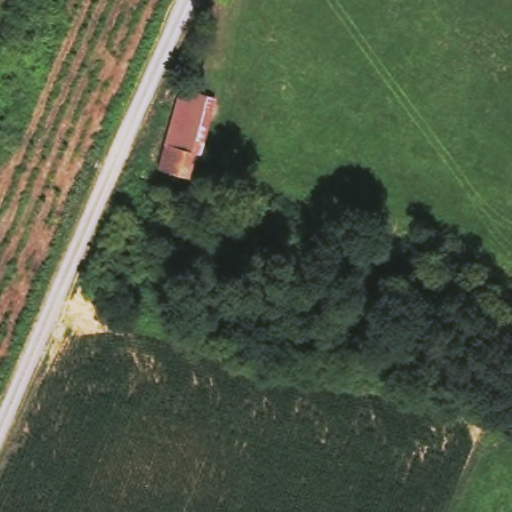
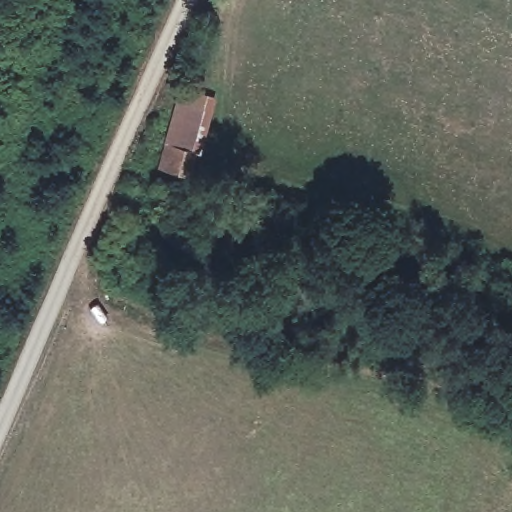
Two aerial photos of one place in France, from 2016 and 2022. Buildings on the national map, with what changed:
unchanged [(155,169),(179,88),(216,102),(198,158),(192,178),(155,169)]

